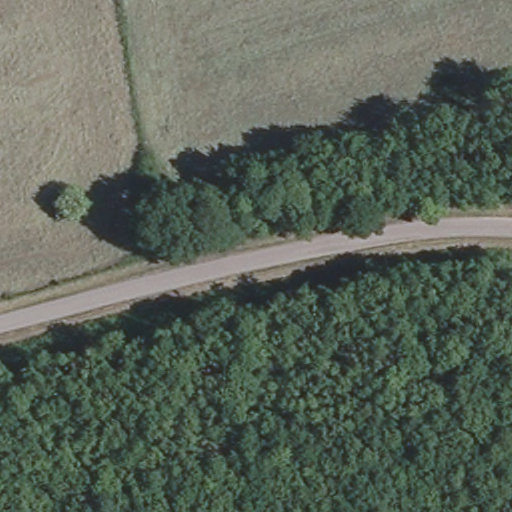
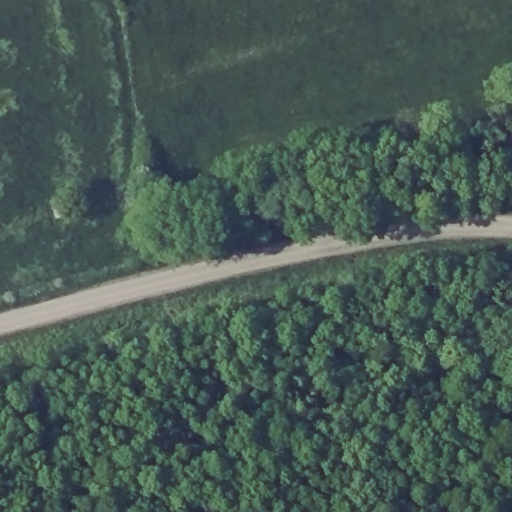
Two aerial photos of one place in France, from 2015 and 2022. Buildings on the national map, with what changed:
unchanged [(39,197),(68,181),(78,212),(59,229),(39,197)]

